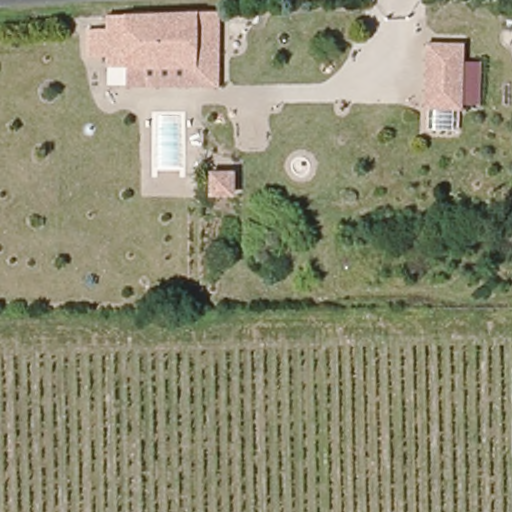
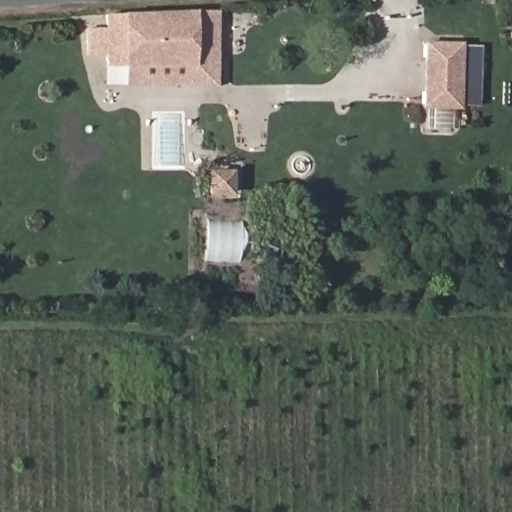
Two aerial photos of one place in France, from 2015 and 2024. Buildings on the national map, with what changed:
unchanged [(91,27),(91,14),(180,8),(202,6),(205,59),(114,65),(114,66),(95,66),(94,56),(74,58),(72,29),(91,27)]
unchanged [(426,43),(463,43),(464,63),(480,63),(480,104),(463,102),(462,109),(455,108),(453,128),(430,129),(432,109),(424,108),(426,43)]
unchanged [(205,59),(207,79),(115,85),(114,66),(114,65),(205,59)]
unchanged [(230,193),(214,193),(216,175),(230,176),(230,193)]
new [(205,218),(240,221),(237,264),(202,262),(205,218)]

